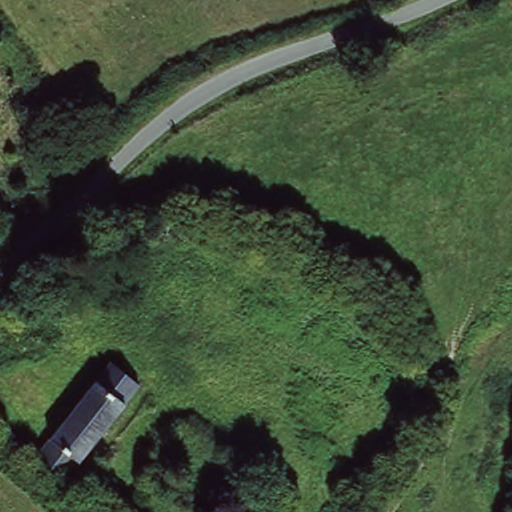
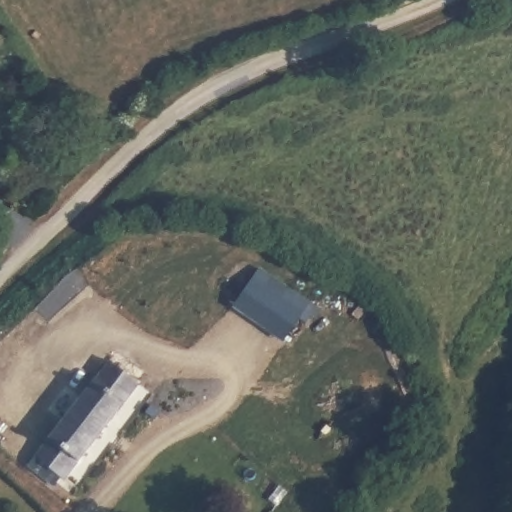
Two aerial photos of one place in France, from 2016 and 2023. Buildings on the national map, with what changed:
new [(289,286),(281,299),(302,313),(282,344),(230,309),(259,269),(289,286)]
unchanged [(108,365),(138,388),(136,391),(64,484),(35,460),(106,368),(108,365)]

